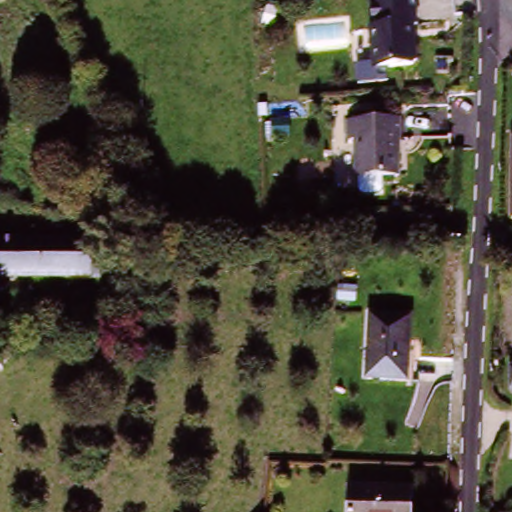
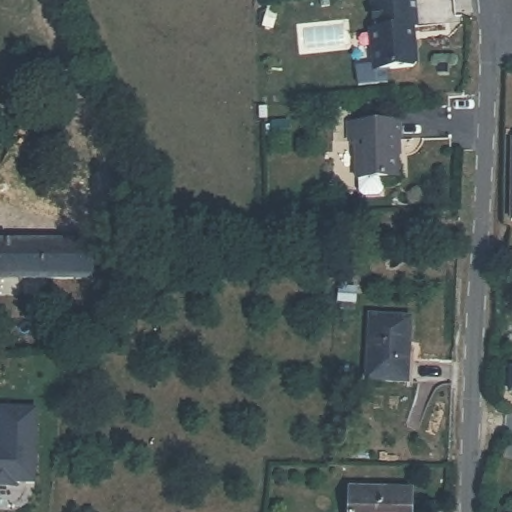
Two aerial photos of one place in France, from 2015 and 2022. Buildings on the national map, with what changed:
unchanged [(377,67),(373,29),(379,28),(376,1),(382,0),(418,0),(420,22),(414,23),(419,64),(377,67)]
unchanged [(363,192),(363,180),(361,140),(354,141),(354,122),(406,119),(406,139),(402,140),(404,179),(387,179),(387,192),(384,197),(368,197),(363,192)]
unchanged [(0,279),(0,243),(88,243),(88,262),(98,262),(98,280),(88,280),(0,279)]
unchanged [(369,386),(374,326),(411,328),(407,389),(369,386)]
new [(37,484),(15,484),(14,487),(0,488),(0,416),(0,407),(38,408),(37,484)]
unchanged [(407,496),(406,512),(346,512),(346,495),(407,496)]

